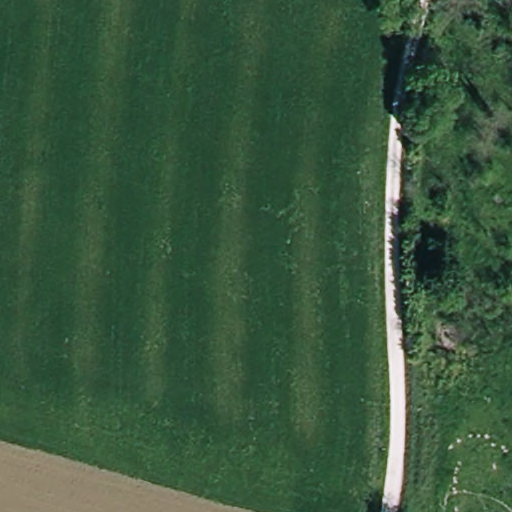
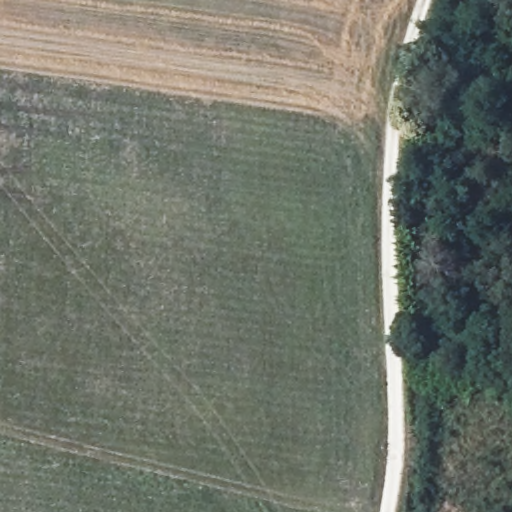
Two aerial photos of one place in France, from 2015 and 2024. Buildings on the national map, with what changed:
unchanged [(437,2),(492,23),(511,33),(512,35),(512,82),(502,89),(477,50),(425,33),(437,2)]

